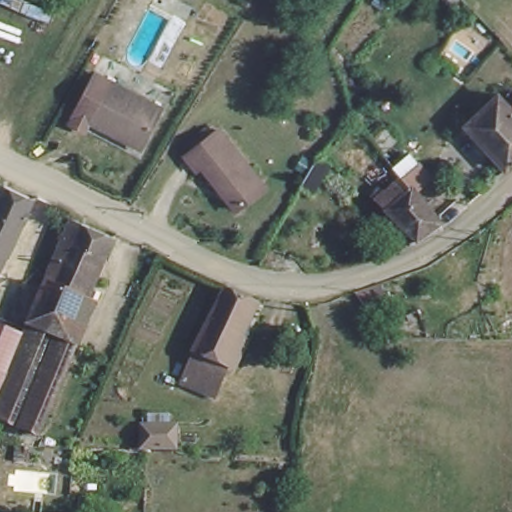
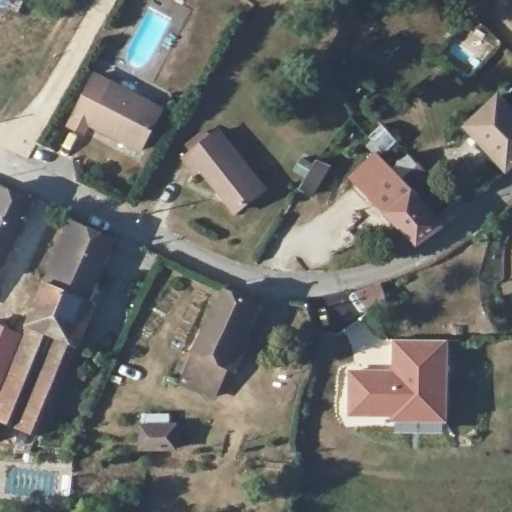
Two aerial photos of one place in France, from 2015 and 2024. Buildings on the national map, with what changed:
unchanged [(102,72),(168,106),(147,147),(98,120),(93,129),(77,121),(102,72)]
unchanged [(505,170),(462,125),(495,96),(512,113),(512,163),(505,170)]
unchanged [(512,110),(512,114),(510,112),(512,110)]
unchanged [(365,170),(379,156),(380,154),(367,139),(365,137),(381,121),(418,159),(420,158),(433,172),(415,190),(411,186),(409,188),(398,176),(392,171),(392,170),(387,165),(373,178),(365,170)]
unchanged [(261,183),(234,207),(197,166),(193,170),(180,157),(187,150),(182,143),(199,128),(205,134),(213,127),(261,183)]
unchanged [(309,195),(297,188),(303,178),(314,159),(326,165),(309,195)]
unchanged [(409,188),(411,186),(415,190),(441,221),(418,240),(372,192),(380,185),(383,189),(398,176),(409,188)]
unchanged [(37,199),(34,206),(0,286),(0,183),(6,185),(7,184),(33,197),(37,199)]
unchanged [(0,407),(36,319),(38,320),(62,261),(60,258),(77,218),(119,235),(78,336),(86,340),(46,430),(31,424),(0,411),(0,407)]
unchanged [(218,381),(186,365),(223,291),(255,308),(218,381)]
unchanged [(0,399),(0,319),(28,330),(0,399)]
new [(347,369),(391,370),(392,339),(445,340),(447,422),(391,421),(391,416),(348,414),(347,369)]
unchanged [(140,448),(140,428),(140,414),(174,414),(174,428),(174,448),(140,448)]
unchanged [(44,472),(42,492),(2,488),(4,468),(44,472)]

